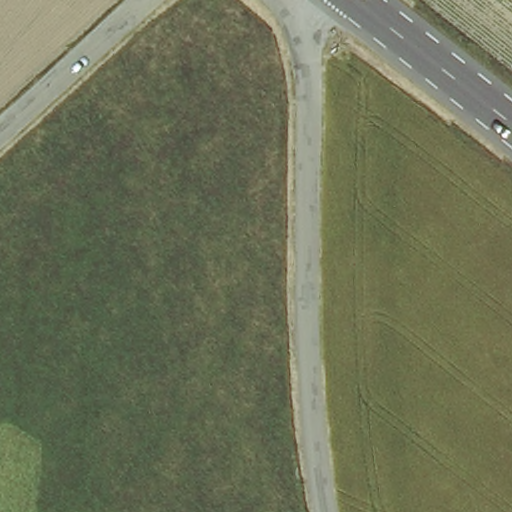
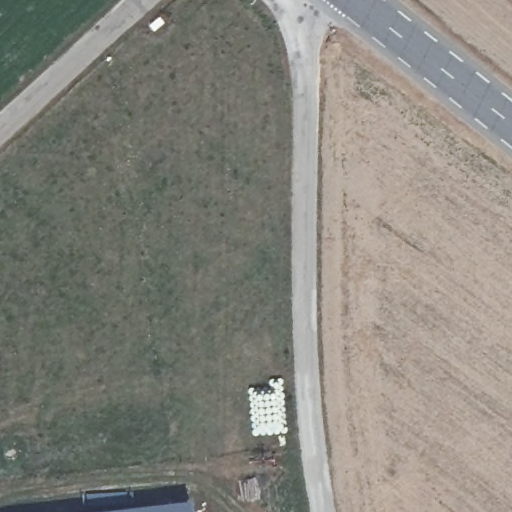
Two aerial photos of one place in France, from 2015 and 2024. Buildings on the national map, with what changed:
new [(189,512),(100,512),(188,502),(189,512)]

